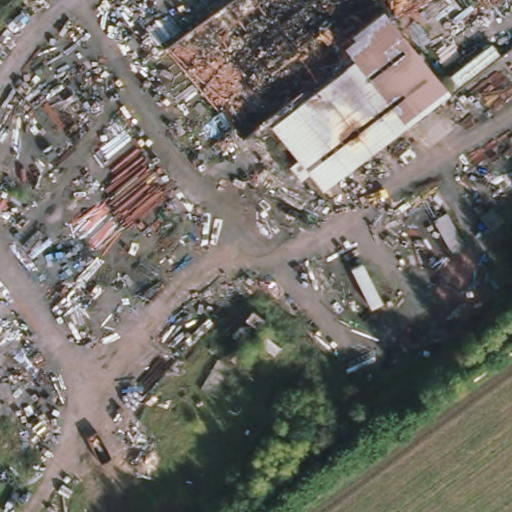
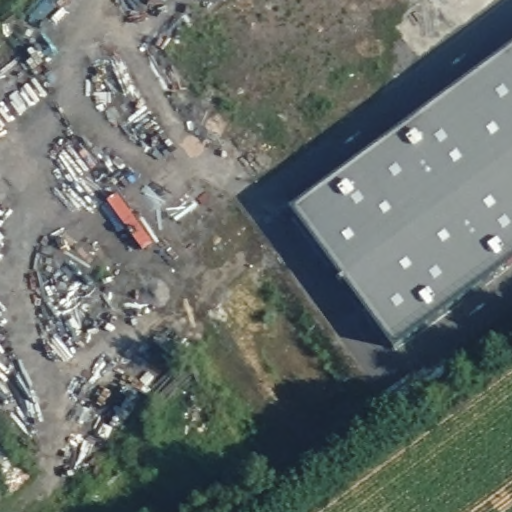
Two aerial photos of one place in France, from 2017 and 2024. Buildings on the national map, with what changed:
demolished [(322,192),(306,176),(301,179),(286,163),(291,158),(265,125),(241,144),(164,45),(229,0),(413,0),(387,20),(444,89),(322,192)]
new [(393,354),(287,214),(512,44),(512,264),(393,354)]

